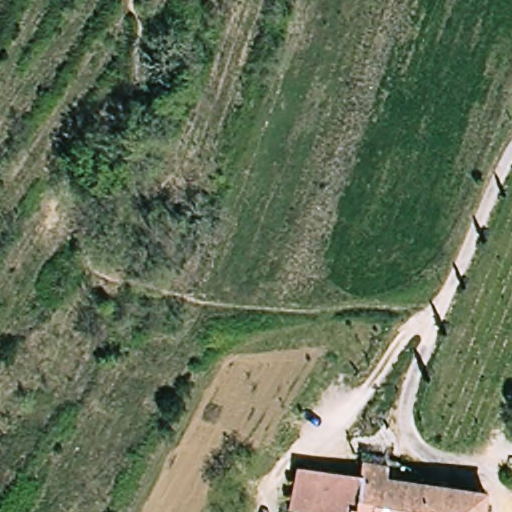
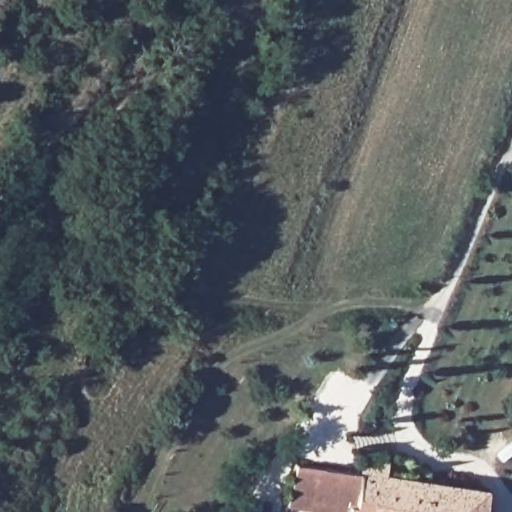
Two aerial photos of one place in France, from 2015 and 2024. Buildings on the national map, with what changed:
unchanged [(487,492),(485,512),(357,512),(358,474),(360,461),(387,464),(385,480),(442,487),(487,492)]
unchanged [(357,512),(333,512),(290,509),(295,467),(358,474),(357,512)]

